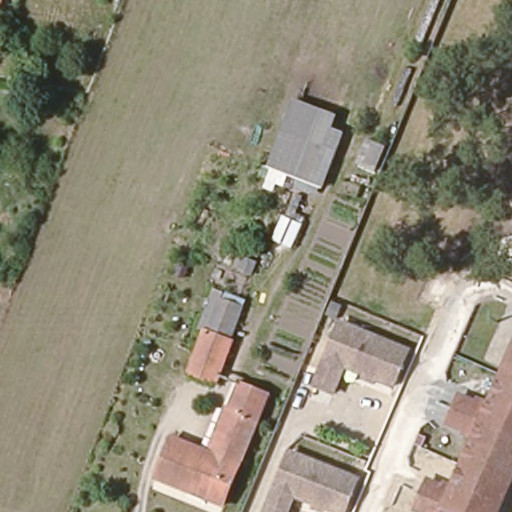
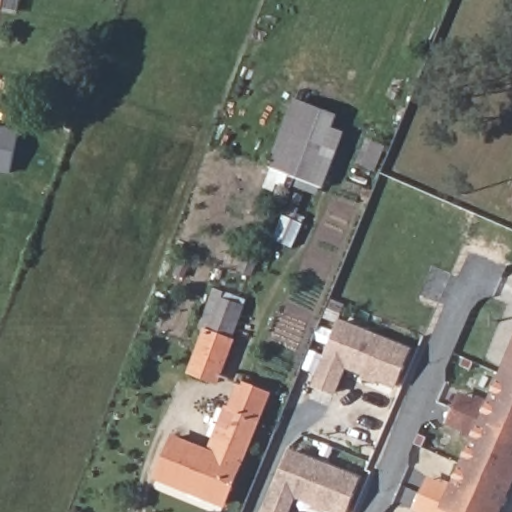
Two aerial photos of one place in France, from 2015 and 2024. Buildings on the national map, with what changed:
unchanged [(1,0),(0,5),(0,0),(1,0)]
unchanged [(316,181),(268,162),(288,98),(338,117),(316,181)]
new [(10,173),(0,171),(0,126),(20,130),(10,173)]
unchanged [(339,361),(327,386),(308,379),(335,316),(370,330),(355,367),(339,361)]
unchanged [(215,382),(187,371),(202,330),(232,340),(215,382)]
unchanged [(370,330),(401,343),(387,380),(355,367),(370,330)]
unchanged [(421,497),(428,481),(435,484),(457,494),(483,436),(475,433),(460,425),(455,422),(461,409),(466,397),(472,399),(487,406),(495,409),(512,371),(512,486),(501,512),(414,512),(421,497)]
unchanged [(234,377),(270,390),(255,421),(231,412),(222,408),(234,377)]
unchanged [(231,412),(255,421),(254,425),(221,503),(155,479),(169,442),(205,454),(211,439),(219,442),(229,416),(231,412)]
unchanged [(293,493),(285,512),(262,512),(261,512),(288,448),(319,461),(303,497),(293,493)]
unchanged [(319,461),(352,476),(337,511),(303,497),(319,461)]

